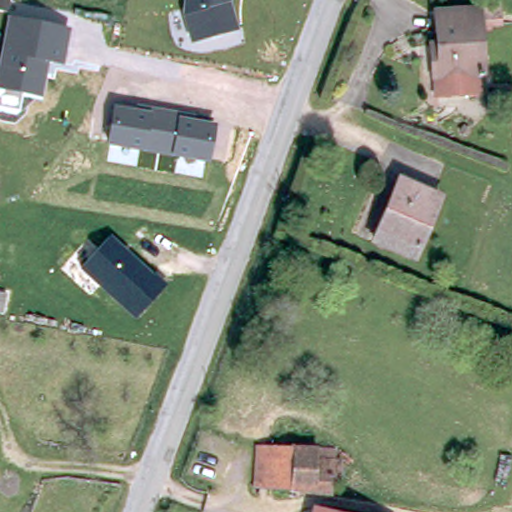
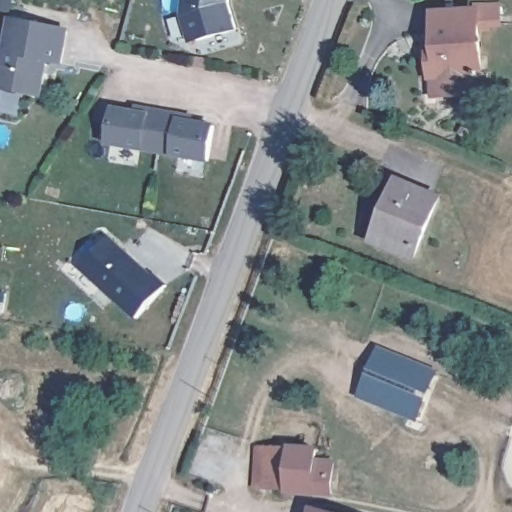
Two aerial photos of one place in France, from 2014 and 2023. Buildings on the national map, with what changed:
unchanged [(237,30),(190,44),(182,17),(184,0),(230,0),(230,4),(237,30)]
unchanged [(434,5),(477,2),(476,0),(499,0),(500,15),(488,16),(488,21),(478,22),(482,68),(477,69),(478,81),(475,86),(437,89),(434,85),(431,47),(430,38),(437,37),(434,5)]
unchanged [(42,96),(0,88),(0,58),(7,19),(70,29),(63,65),(48,62),(42,96)]
unchanged [(195,115),(194,119),(216,123),(209,162),(173,156),(147,152),(107,145),(112,105),(133,110),(135,105),(195,115)]
unchanged [(415,260),(376,243),(387,215),(385,214),(398,182),(440,199),(415,260)]
unchanged [(155,273),(167,285),(135,318),(80,268),(112,235),(153,275),(155,273)]
new [(378,352),(438,377),(424,411),(420,420),(360,395),(364,386),(378,352)]
unchanged [(288,491),(254,488),(257,447),(290,448),(288,491)]
unchanged [(288,492),(288,491),(290,448),(315,450),(315,451),(333,452),(333,463),(331,495),(288,492)]
unchanged [(318,509),(329,512),(317,512),(318,509)]

